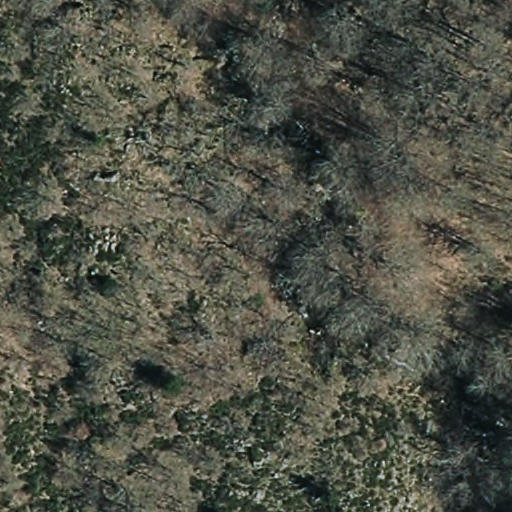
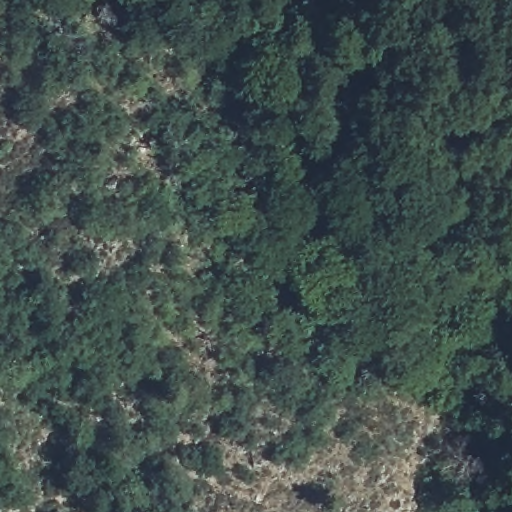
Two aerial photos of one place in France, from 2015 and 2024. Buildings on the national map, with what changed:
[]

